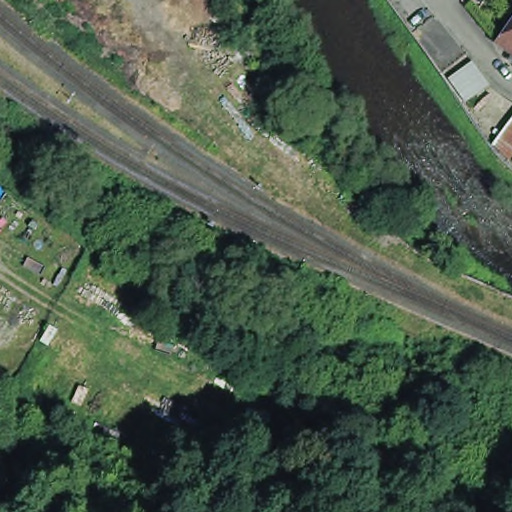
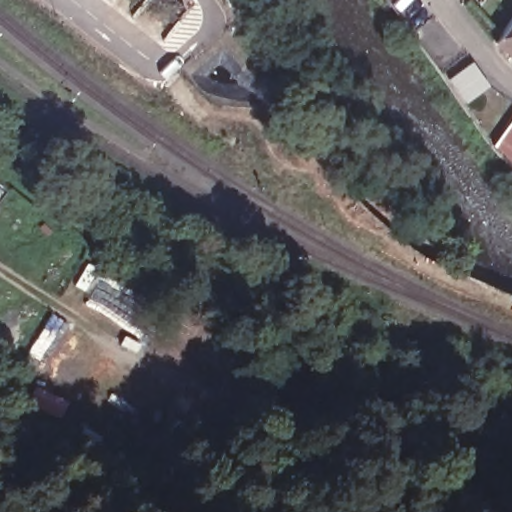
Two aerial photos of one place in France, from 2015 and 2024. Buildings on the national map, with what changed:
unchanged [(489,47),(512,16),(512,64),(489,47)]
unchanged [(451,80),(474,62),(483,74),(491,85),(468,102),(459,92),(451,80)]
unchanged [(512,119),(512,158),(508,166),(491,147),(512,119)]

